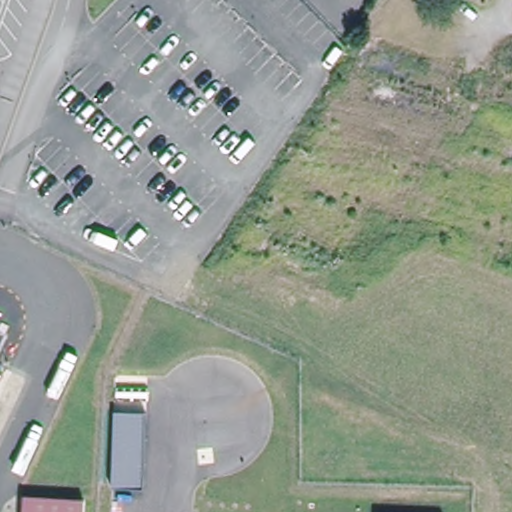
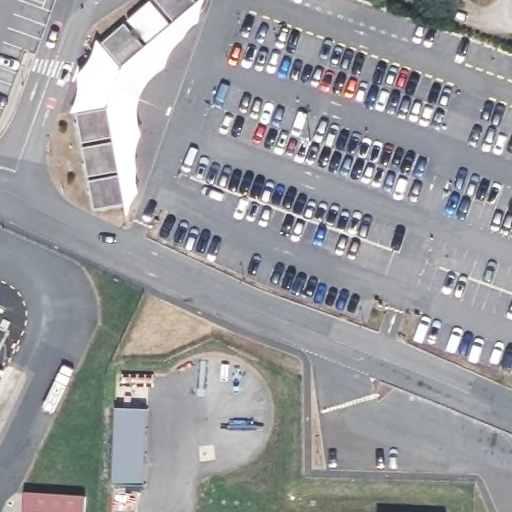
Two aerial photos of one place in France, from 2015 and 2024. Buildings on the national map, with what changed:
new [(72,113),(75,105),(77,95),(79,87),(78,78),(79,75),(83,70),(87,63),(91,57),(96,44),(98,38),(103,42),(123,66),(197,2),(199,0),(205,0),(205,1),(202,8),(200,17),(200,22),(196,25),(191,29),(187,35),(184,39),(176,48),(170,57),(168,65),(165,69),(158,74),(148,84),(140,98),(139,109),(140,120),(142,130),(143,136),(140,142),(137,153),(137,165),(139,172),(138,176),(139,187),(140,193),(136,196),(132,205),(130,214),(127,217),(125,204),(127,203),(107,104),(76,110),(77,112),(72,113)]
new [(197,2),(123,66),(103,42),(151,0),(195,0),(197,2)]
new [(107,104),(127,203),(96,209),(76,110),(107,104)]
unchanged [(146,409),(144,484),(111,482),(113,407),(146,409)]
unchanged [(85,512),(26,512),(28,493),(86,497),(85,512)]

